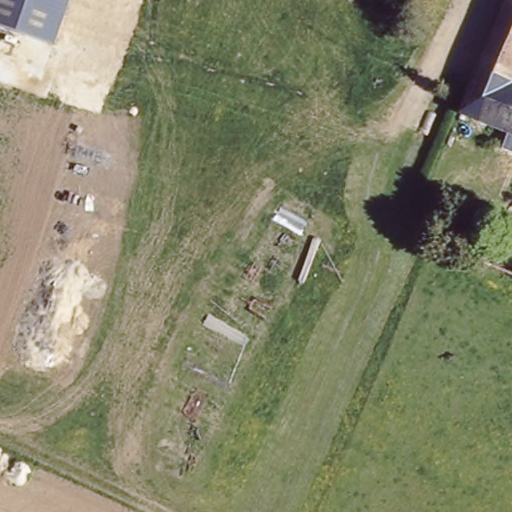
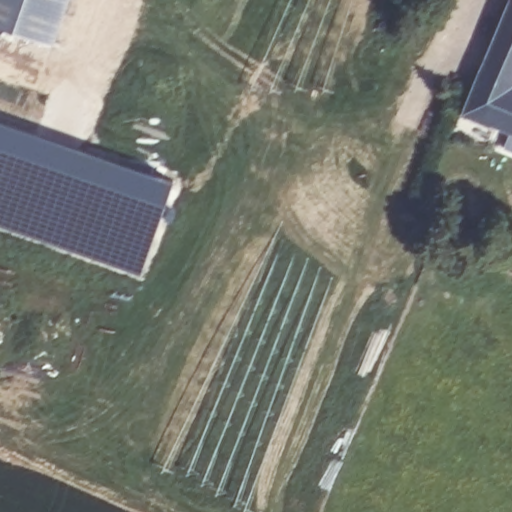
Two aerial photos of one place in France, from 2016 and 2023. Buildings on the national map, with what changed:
unchanged [(0,20),(0,0),(62,0),(45,39),(0,20)]
unchanged [(510,6),(512,7),(512,144),(478,131),(463,119),(510,6)]
new [(142,272),(0,225),(0,123),(172,179),(142,272)]

